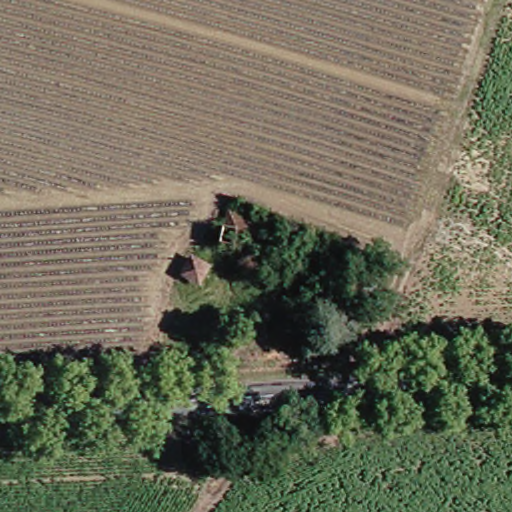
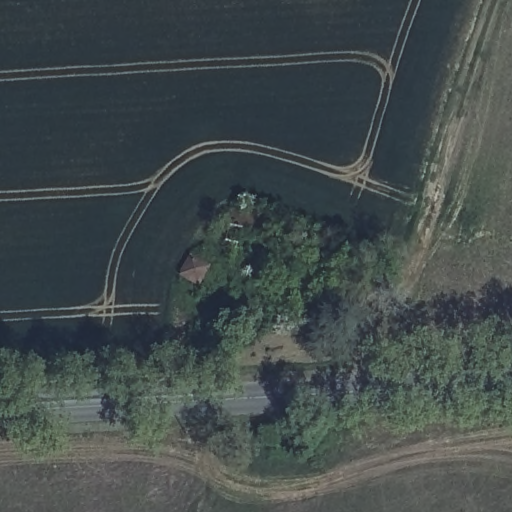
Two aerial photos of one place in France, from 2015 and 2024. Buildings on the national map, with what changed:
unchanged [(205,268),(198,281),(185,274),(192,262),(205,268)]

